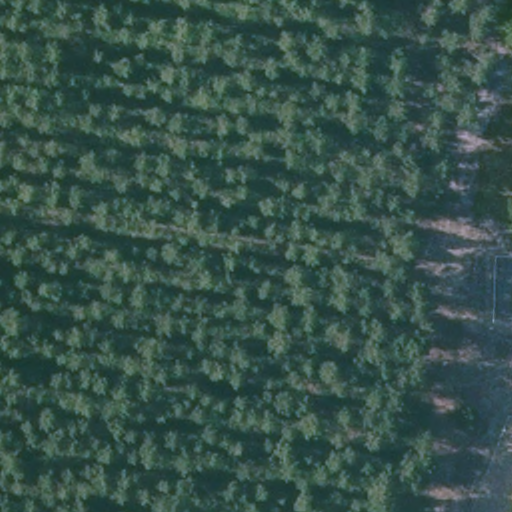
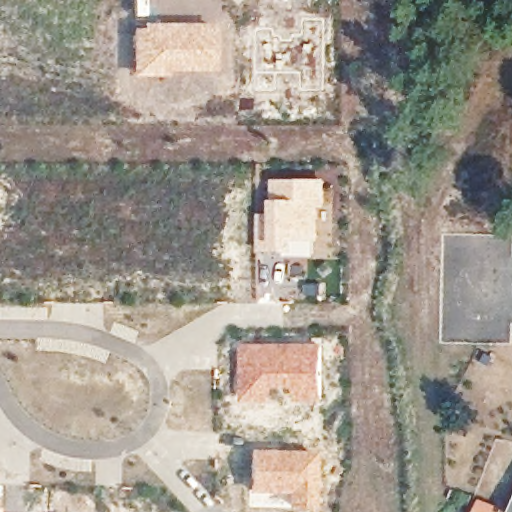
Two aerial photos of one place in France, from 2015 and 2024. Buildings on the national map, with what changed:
new [(273,27),(273,35),(280,34),(280,40),(289,41),(289,34),(299,34),(299,17),(323,17),(323,90),(299,90),(299,72),(274,72),(274,92),(254,92),(254,27),(273,27)]
new [(166,71),(166,76),(130,76),(130,27),(141,27),(141,22),(215,22),(215,71),(166,71)]
new [(329,241),(318,242),(318,258),(285,258),(285,252),(259,252),(259,215),(274,215),(274,180),(329,180),(329,241)]
new [(293,402),(294,389),(274,390),(274,402),(241,402),(241,344),(324,343),(324,402),(293,402)]
new [(289,509),(288,494),(250,493),(251,450),(318,452),(316,510),(289,509)]

